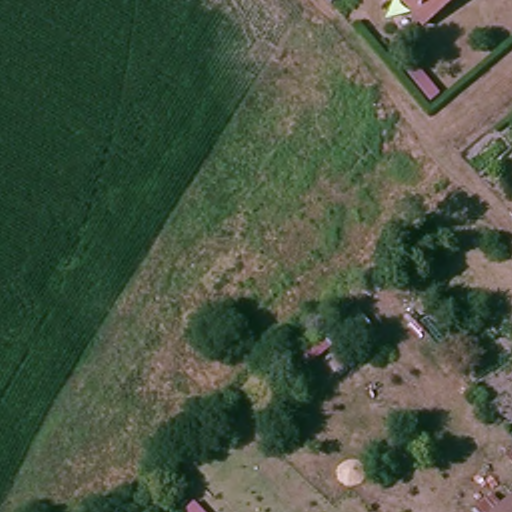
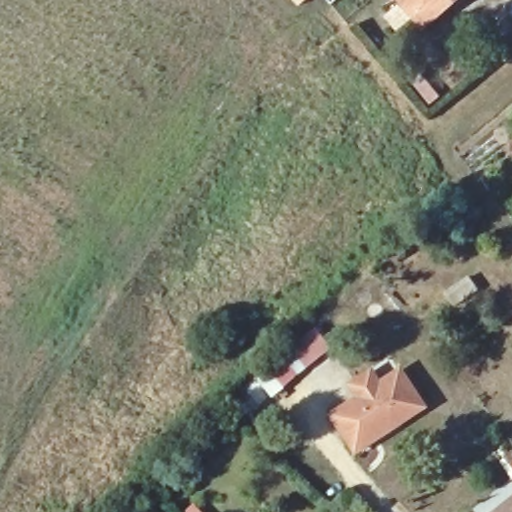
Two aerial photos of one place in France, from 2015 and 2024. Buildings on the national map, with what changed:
new [(299,5),(294,0),(305,0),(299,5)]
unchanged [(424,11),(413,0),(437,0),(424,11)]
new [(313,326),(331,343),(309,366),(277,398),(259,380),(291,348),(313,326)]
new [(357,453),(330,412),(357,395),(349,383),(374,366),(382,379),(403,366),(429,406),(357,453)]
unchanged [(512,512),(496,512),(512,499),(512,512)]

